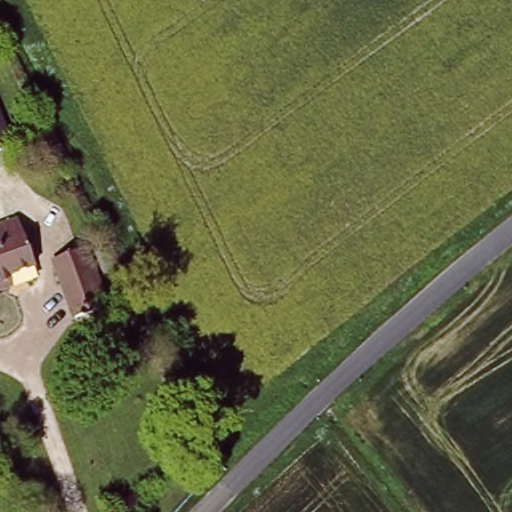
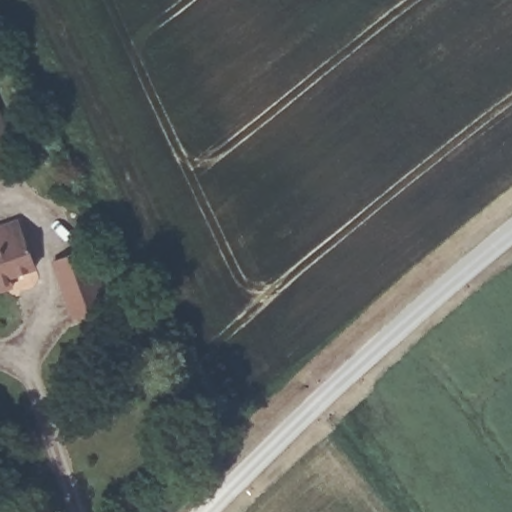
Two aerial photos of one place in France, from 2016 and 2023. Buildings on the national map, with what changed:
unchanged [(0,153),(0,111),(15,147),(0,153)]
unchanged [(9,276),(11,287),(0,291),(0,226),(18,219),(35,266),(9,276)]
unchanged [(55,262),(90,249),(107,308),(74,321),(55,262)]

